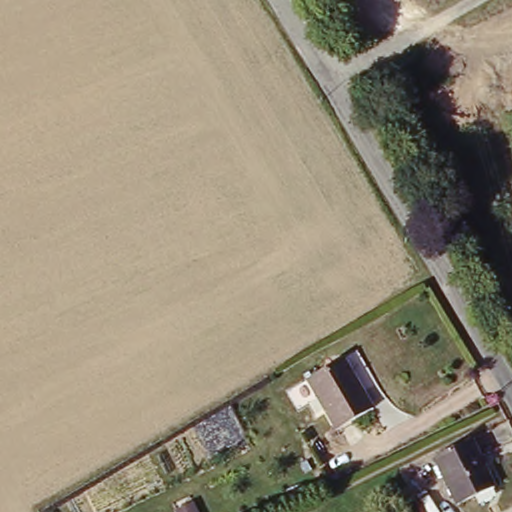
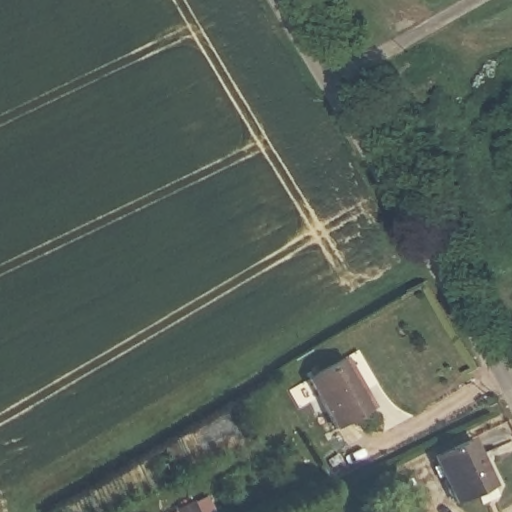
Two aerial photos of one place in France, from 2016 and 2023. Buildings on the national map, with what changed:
unchanged [(343,362),(373,409),(335,432),(306,384),(343,362)]
unchanged [(459,509),(436,467),(474,446),(494,492),(459,509)]

